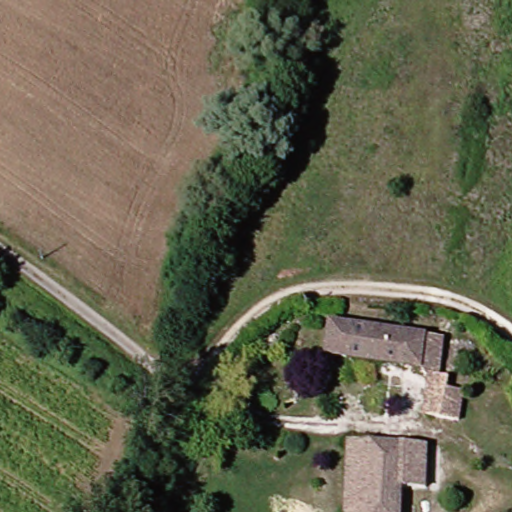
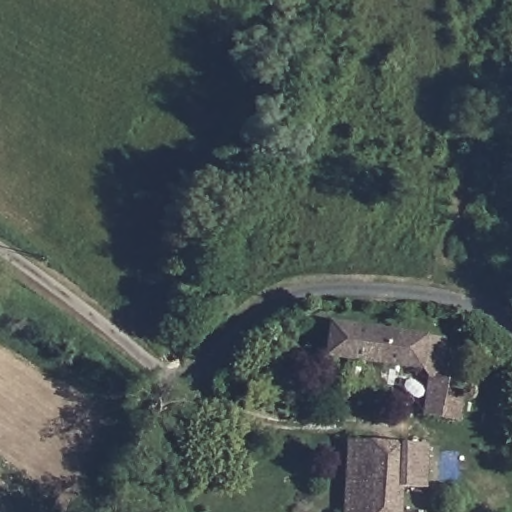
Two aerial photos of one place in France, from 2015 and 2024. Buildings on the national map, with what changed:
unchanged [(469,419),(432,415),(436,385),(432,375),(337,360),(340,324),(451,340),(447,378),(455,379),(459,343),(480,345),(469,419)]
unchanged [(355,443),(404,444),(405,472),(354,472),(355,443)]
unchanged [(405,472),(404,444),(430,445),(430,450),(430,486),(407,486),(406,512),(352,512),(354,472),(405,472)]

